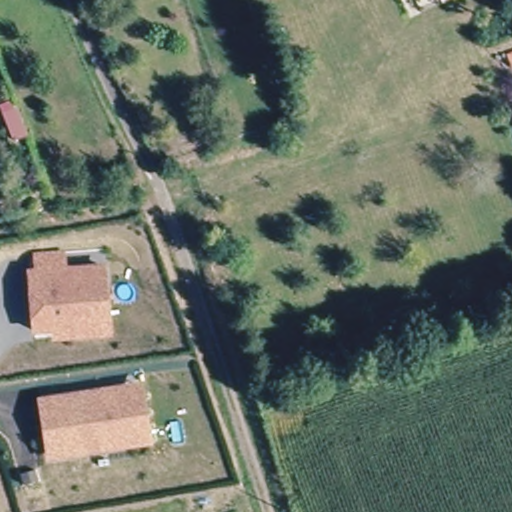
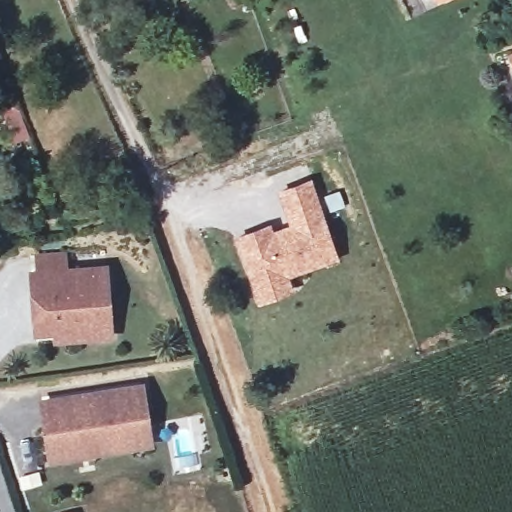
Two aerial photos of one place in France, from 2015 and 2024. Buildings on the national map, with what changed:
new [(289,277),(293,290),(258,302),(237,235),(270,223),(273,230),(288,225),(277,190),(312,179),(339,260),(289,277)]
unchanged [(70,337),(69,330),(33,332),(28,272),(33,272),(32,254),(59,252),(60,270),(103,266),(105,290),(109,333),(70,337)]
unchanged [(40,402),(90,395),(91,402),(98,401),(97,394),(125,389),(140,387),(149,442),(134,444),(49,457),(40,402)]

